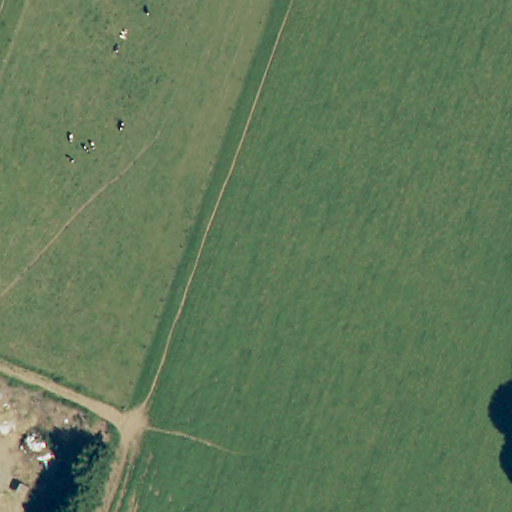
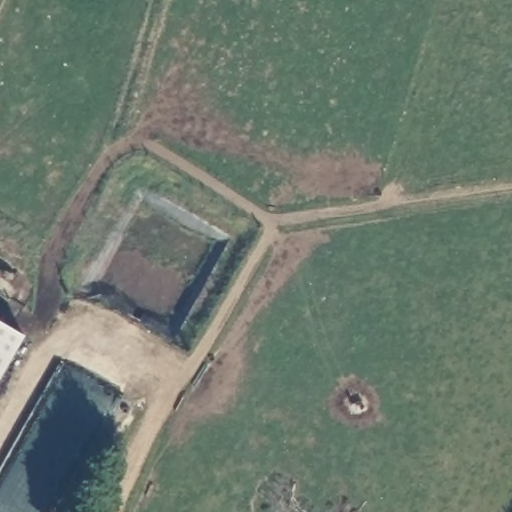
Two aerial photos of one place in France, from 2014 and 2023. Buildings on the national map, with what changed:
new [(25,337),(0,380),(0,323),(25,337)]

